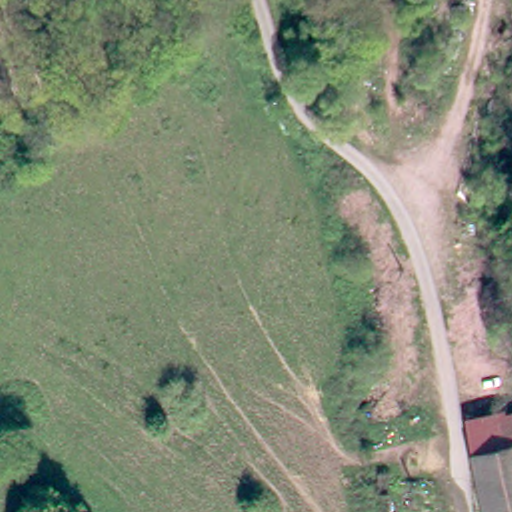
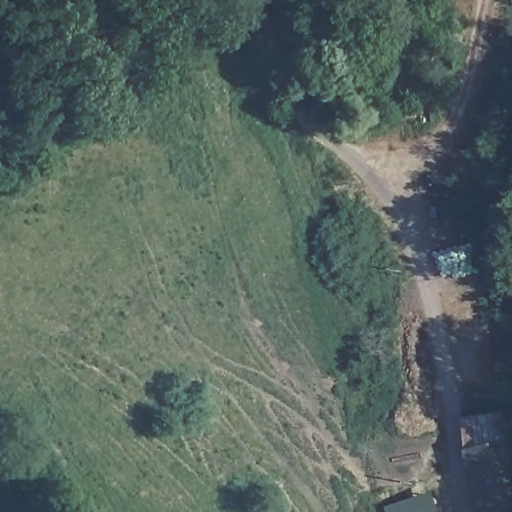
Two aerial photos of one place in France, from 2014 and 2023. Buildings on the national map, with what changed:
unchanged [(512,413),(512,512),(482,512),(463,425),(512,413)]
new [(438,492),(443,512),(386,512),(384,506),(438,492)]

